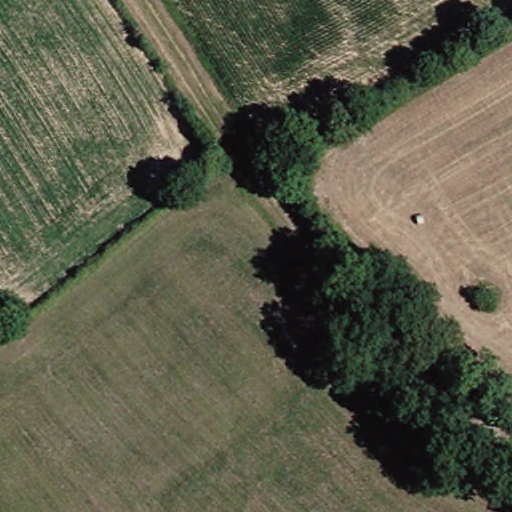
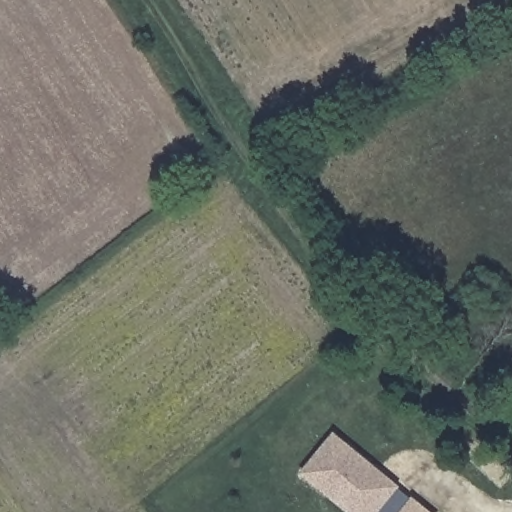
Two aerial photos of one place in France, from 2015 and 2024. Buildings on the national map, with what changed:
new [(333,432),(397,488),(395,492),(408,503),(413,496),(431,512),(344,512),(300,474),(333,432)]

